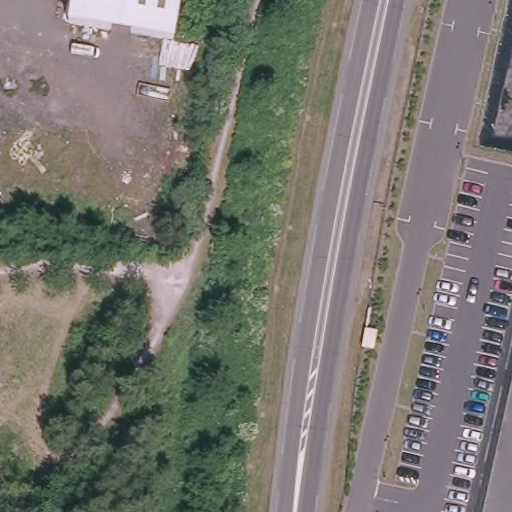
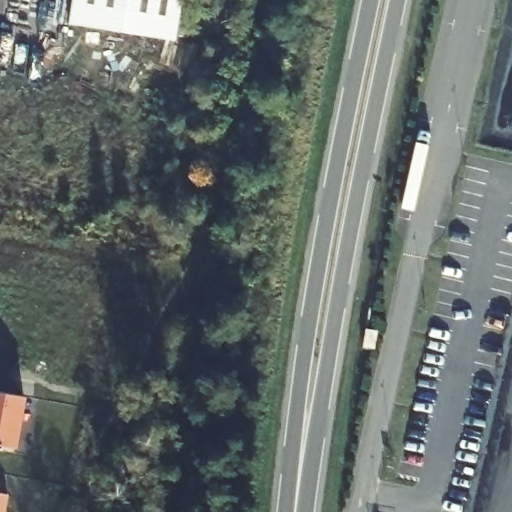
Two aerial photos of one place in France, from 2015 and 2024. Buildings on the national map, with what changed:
unchanged [(73,0),(181,0),(175,37),(70,19),(73,0)]
new [(16,447),(0,445),(0,392),(26,397),(16,447)]
new [(6,512),(0,512),(0,493),(10,495),(6,512)]

